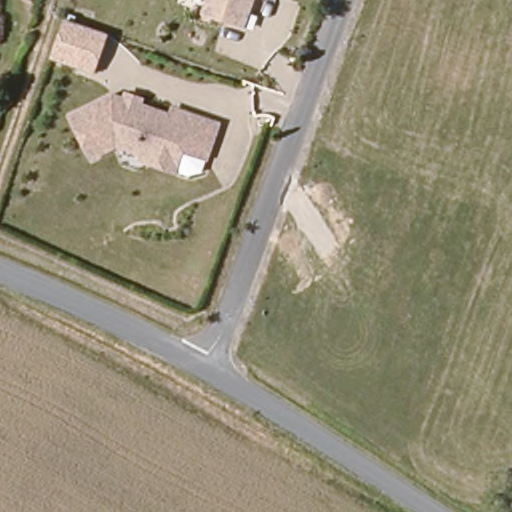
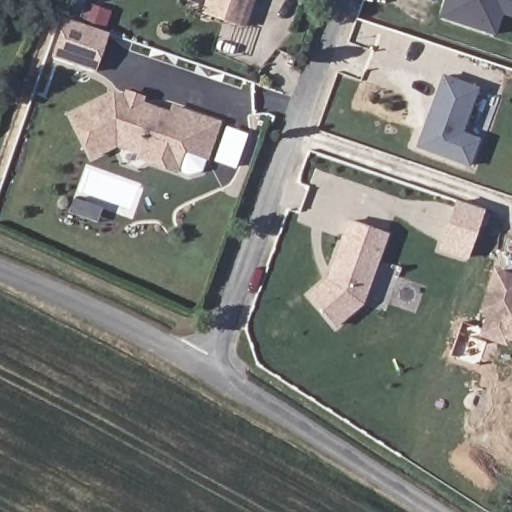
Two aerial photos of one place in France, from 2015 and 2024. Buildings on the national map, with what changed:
unchanged [(199,13),(203,0),(250,0),(241,27),(199,13)]
new [(505,0),(494,34),(440,17),(446,0),(505,0)]
unchanged [(107,34),(92,73),(48,58),(62,19),(107,34)]
new [(442,78),(476,90),(460,134),(478,139),(469,165),(416,148),(442,78)]
unchanged [(219,121),(201,172),(189,174),(177,172),(136,160),(138,154),(114,146),(88,161),(65,110),(108,89),(121,93),(123,88),(144,95),(142,103),(167,110),(168,104),(219,121)]
new [(456,202),(483,210),(468,259),(440,250),(456,202)]
new [(364,304),(337,329),(309,295),(326,279),(347,220),(389,234),(364,304)]
new [(512,348),(479,338),(485,316),(478,314),(494,267),(512,273),(512,348)]

